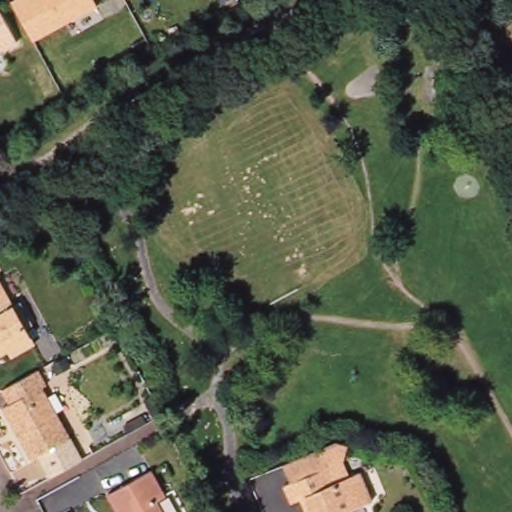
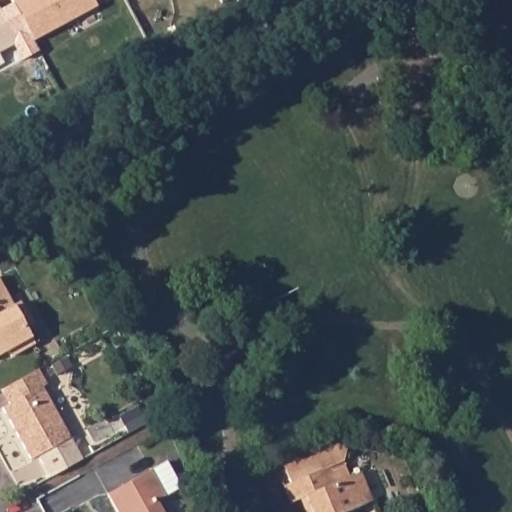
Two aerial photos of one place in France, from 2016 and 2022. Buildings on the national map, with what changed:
unchanged [(33,41),(12,1),(14,0),(94,0),(97,6),(33,41)]
unchanged [(17,44),(0,53),(0,12),(17,44)]
unchanged [(14,305),(20,302),(32,325),(26,328),(35,343),(12,356),(8,350),(0,354),(0,281),(14,305)]
unchanged [(42,385),(37,387),(77,460),(45,477),(33,456),(26,460),(0,413),(0,407),(5,404),(0,396),(0,388),(16,380),(33,370),(42,385)]
unchanged [(291,504),(283,487),(291,484),(282,466),(282,465),(336,443),(348,446),(348,447),(347,447),(344,463),(350,478),(360,474),(372,502),(349,512),(305,512),(300,500),(291,504)]
unchanged [(102,495),(146,470),(161,496),(152,501),(158,512),(112,512),(102,495)]

